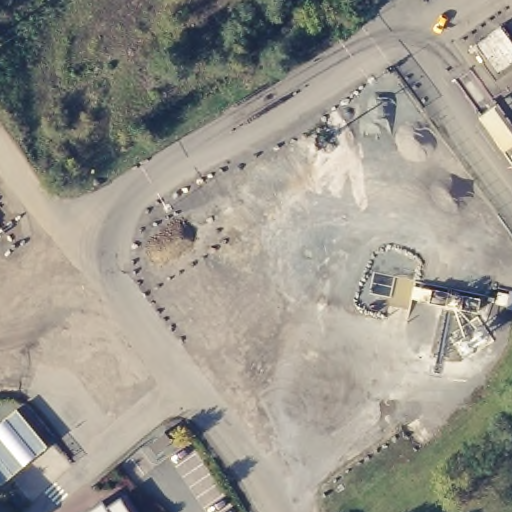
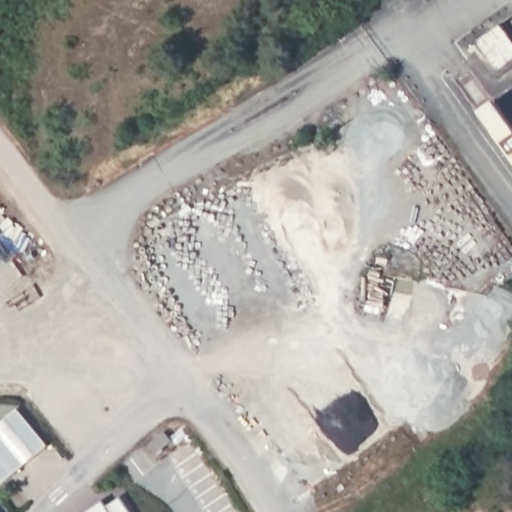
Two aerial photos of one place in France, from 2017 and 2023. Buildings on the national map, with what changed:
unchanged [(512,18),(512,33),(506,23),(512,18)]
unchanged [(481,62),(485,58),(474,43),(500,25),(512,42),(512,63),(492,78),(481,62)]
unchanged [(499,107),(512,127),(512,164),(481,119),(499,107)]
unchanged [(56,459),(44,468),(6,420),(18,411),(56,459)]
unchanged [(227,512),(219,502),(228,495),(241,511),(239,512),(227,512)]
unchanged [(106,506),(120,497),(131,512),(82,512),(102,499),(106,506)]

